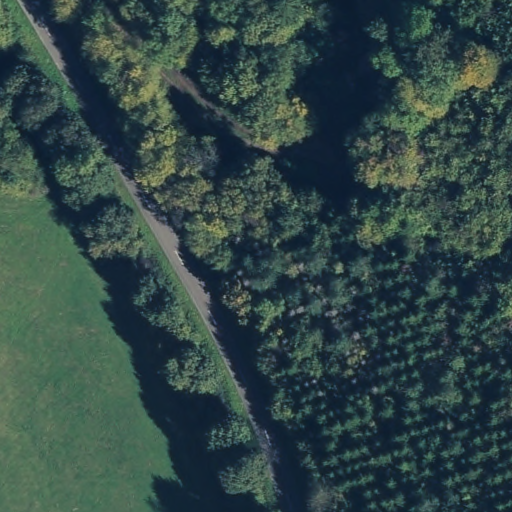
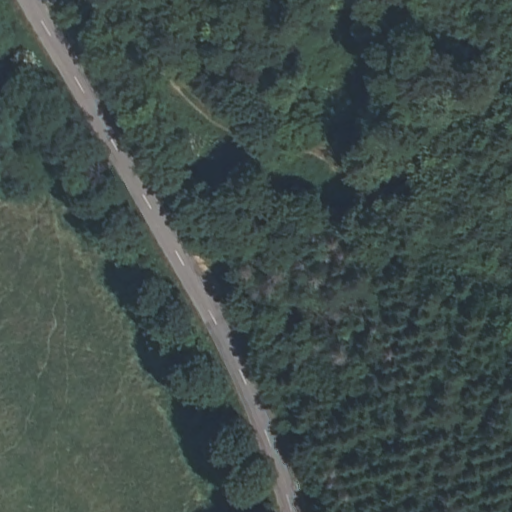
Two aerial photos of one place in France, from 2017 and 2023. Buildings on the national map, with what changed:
unchanged [(350,512),(333,512),(349,508),(350,512)]

